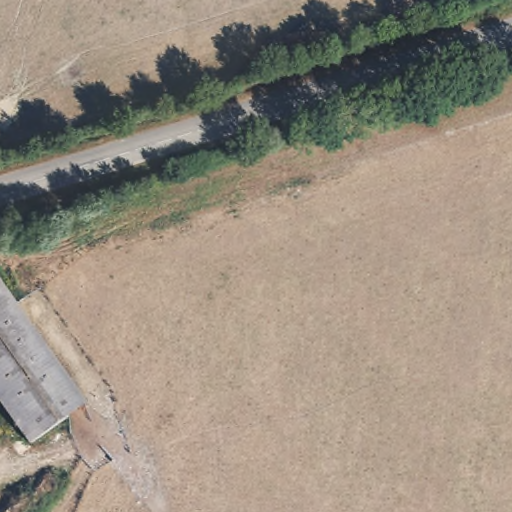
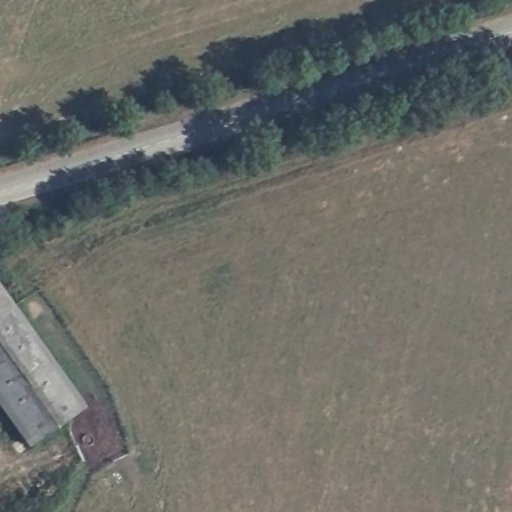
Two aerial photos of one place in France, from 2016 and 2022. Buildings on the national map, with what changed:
unchanged [(28,442),(0,401),(0,283),(83,406),(28,442)]

